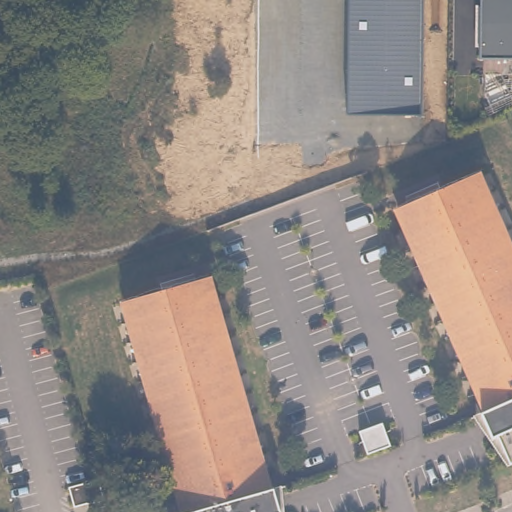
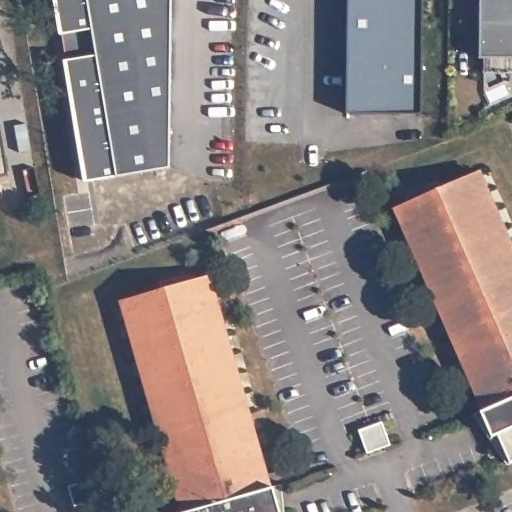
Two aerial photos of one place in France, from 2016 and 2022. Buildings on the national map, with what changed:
new [(85,182),(55,0),(173,0),(171,167),(117,176),(85,182)]
unchanged [(422,115),(347,116),(348,0),(422,0),(422,115)]
unchanged [(482,59),(483,0),(512,0),(512,73),(482,72),(482,59)]
new [(7,174),(0,176),(0,126),(7,174)]
unchanged [(501,436),(497,438),(486,413),(492,410),(477,378),(475,372),(430,270),(402,207),(462,181),(481,173),(512,243),(512,456),(503,435),(501,436)]
unchanged [(176,480),(167,446),(164,436),(161,426),(153,396),(144,363),(127,300),(142,296),(210,277),(227,340),(248,415),(257,449),(265,479),(268,491),(275,489),(277,501),(278,503),(280,512),(185,512),(182,500),(176,480)]
new [(382,422),(391,445),(367,454),(359,431),(382,422)]
new [(99,478),(104,498),(94,501),(74,506),(74,505),(68,486),(99,478)]

